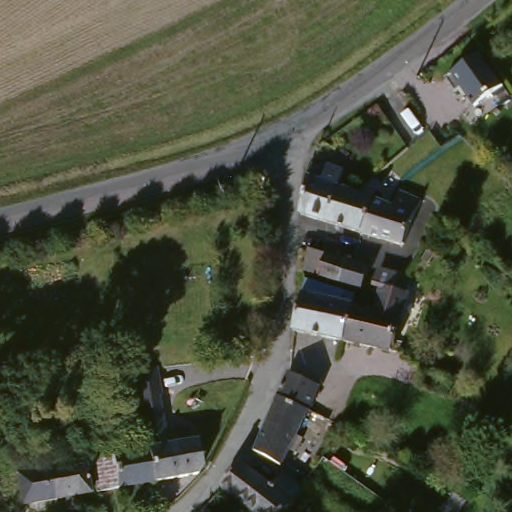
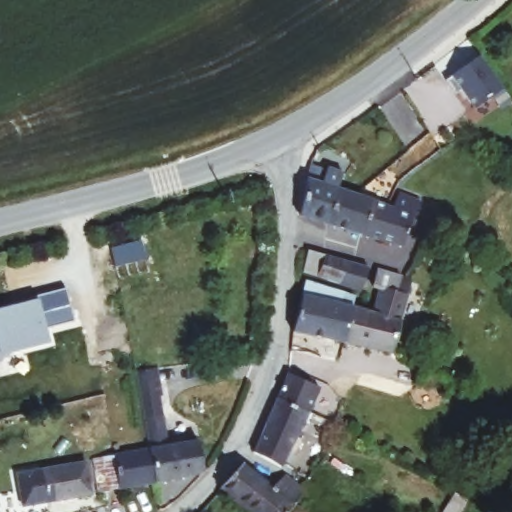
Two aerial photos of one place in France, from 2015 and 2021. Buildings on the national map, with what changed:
unchanged [(472,107),(449,76),(481,54),(503,85),(472,107)]
unchanged [(319,177),(321,172),(334,174),(332,192),(324,227),(293,223),(300,186),(302,175),(305,175),(319,177)]
unchanged [(396,206),(402,191),(425,197),(423,207),(402,240),(381,237),(380,246),(361,242),(363,234),(359,233),(367,200),(391,204),(396,206)]
unchanged [(324,227),(332,192),(356,197),(367,200),(359,233),(324,227)]
unchanged [(350,292),(337,290),(308,285),(306,285),(305,284),(297,282),(303,254),(312,256),(315,257),(316,257),(341,262),(366,267),(364,286),(363,296),(350,292)]
unchanged [(425,330),(424,331),(422,341),(417,367),(341,350),(343,336),(344,327),(347,312),(367,316),(375,289),(371,288),(374,271),(396,277),(402,279),(407,281),(406,283),(398,322),(403,323),(425,330)]
new [(74,319),(46,325),(49,342),(3,355),(4,360),(0,360),(0,308),(33,299),(32,296),(65,288),(74,319)]
unchanged [(344,327),(343,336),(341,350),(286,337),(297,289),(349,299),(347,312),(344,327)]
unchanged [(106,459),(156,450),(152,418),(148,385),(146,371),(166,367),(168,385),(172,415),(176,446),(204,441),(205,478),(160,487),(112,497),(106,459)]
unchanged [(434,405),(410,391),(417,378),(420,372),(443,386),(436,401),(434,405)]
unchanged [(281,400),(282,398),(292,376),(321,387),(311,413),(283,469),(258,454),(281,400)]
unchanged [(38,505),(33,472),(77,465),(81,496),(38,505)]
unchanged [(291,512),(245,512),(225,495),(223,492),(244,466),(277,492),(285,479),(299,492),(303,495),(291,512)]

